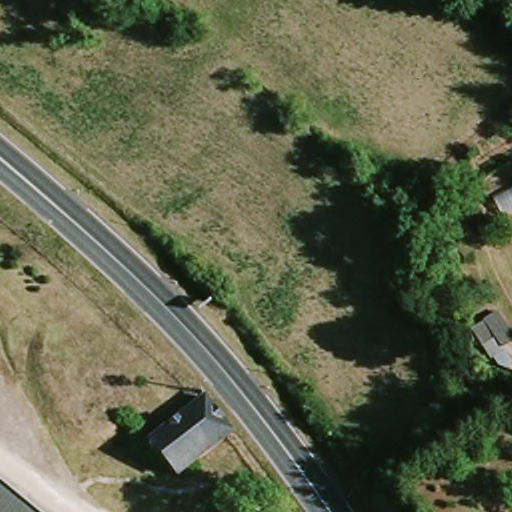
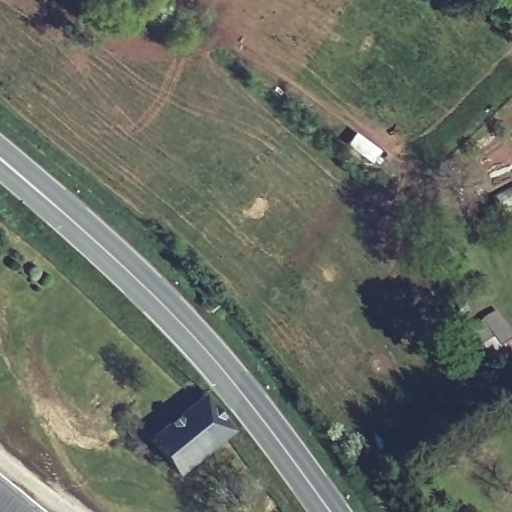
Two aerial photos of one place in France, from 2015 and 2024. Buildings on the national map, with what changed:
unchanged [(497,312),(512,336),(512,344),(502,352),(505,357),(490,366),(469,330),(497,312)]
unchanged [(211,398),(239,434),(185,477),(159,443),(211,398)]
unchanged [(0,473),(48,512),(0,512),(0,473)]
unchanged [(195,502),(222,490),(232,512),(200,512),(195,502)]

